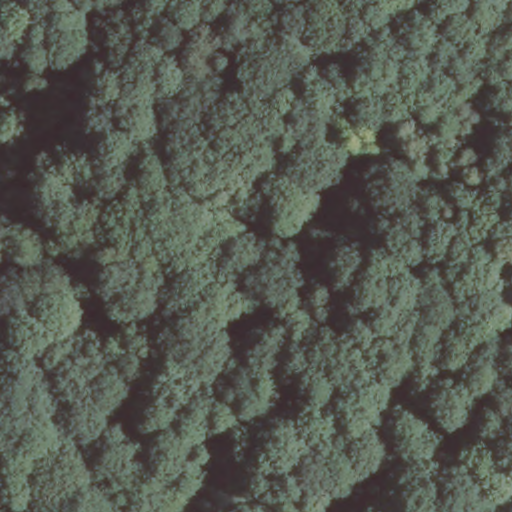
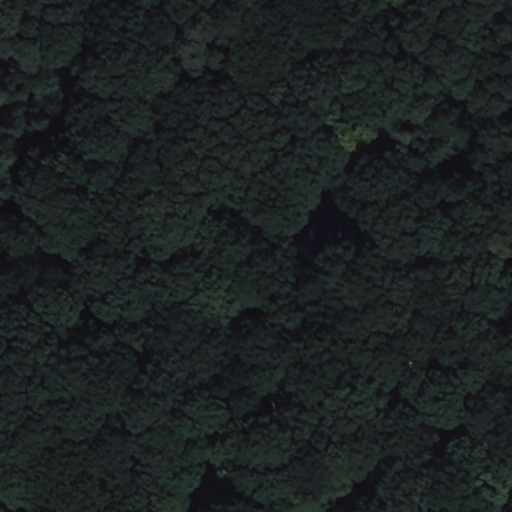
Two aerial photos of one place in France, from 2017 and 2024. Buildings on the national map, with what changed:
[]

